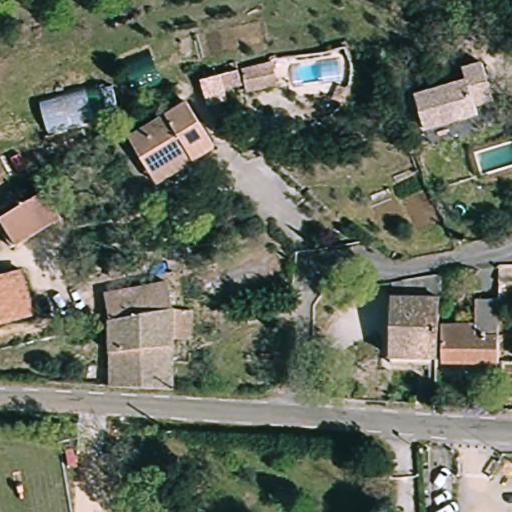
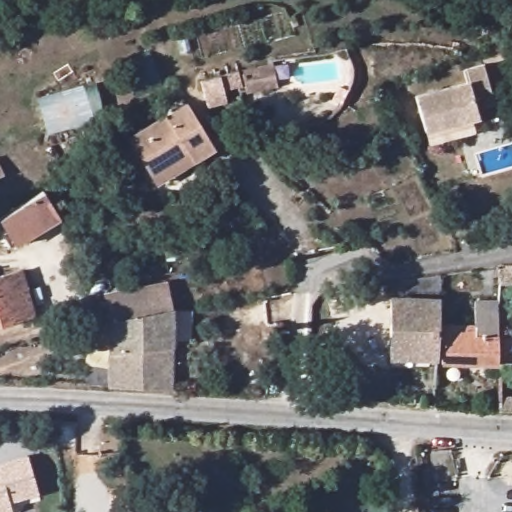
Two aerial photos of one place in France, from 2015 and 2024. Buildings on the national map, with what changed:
unchanged [(467,77),(463,66),(481,58),(496,92),(478,100),(482,109),(432,131),(418,98),(467,77)]
unchanged [(240,97),(232,72),(270,64),(275,91),(240,97)]
unchanged [(108,117),(50,133),(39,102),(97,84),(108,117)]
unchanged [(145,172),(127,137),(180,105),(205,150),(187,161),(150,182),(145,172)]
unchanged [(0,228),(0,222),(50,203),(58,225),(6,244),(0,228)]
unchanged [(500,267),(512,267),(512,283),(501,283),(500,267)]
unchanged [(387,364),(385,289),(393,287),(432,279),(430,361),(430,363),(387,364)]
unchanged [(26,282),(32,321),(0,324),(0,284),(26,282)]
unchanged [(168,286),(172,313),(115,323),(106,324),(103,325),(102,294),(105,293),(168,286)]
unchanged [(500,337),(501,365),(501,368),(440,368),(439,332),(474,331),(474,306),(497,305),(500,337)]
unchanged [(106,324),(115,323),(172,313),(167,393),(106,389),(103,325),(106,324)]
unchanged [(512,365),(512,410),(505,410),(501,368),(501,365),(512,365)]
new [(28,455),(39,492),(10,500),(13,510),(6,512),(0,512),(0,463),(28,455)]

